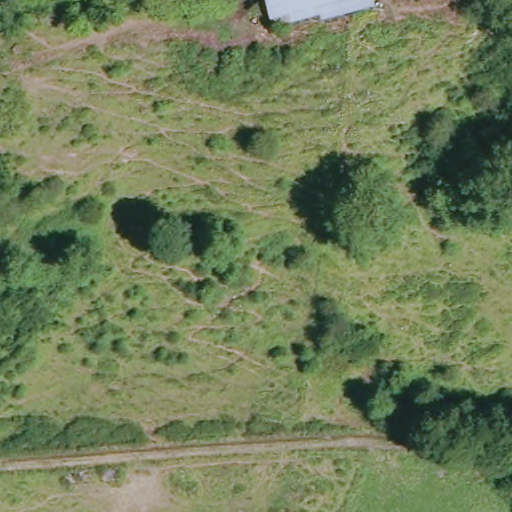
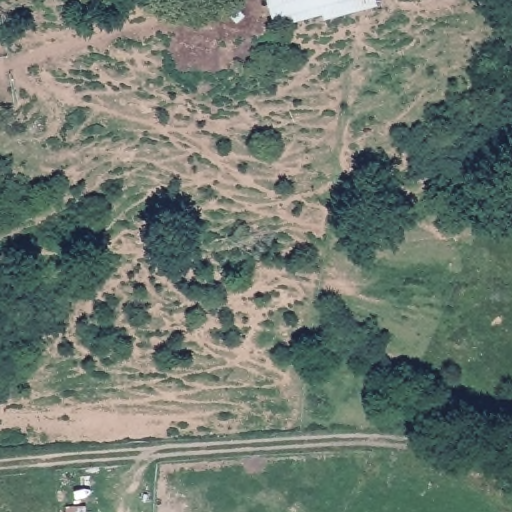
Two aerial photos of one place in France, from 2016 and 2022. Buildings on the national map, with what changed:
unchanged [(325,16),(281,28),(272,0),(383,0),(386,8),(329,26),(325,16)]

